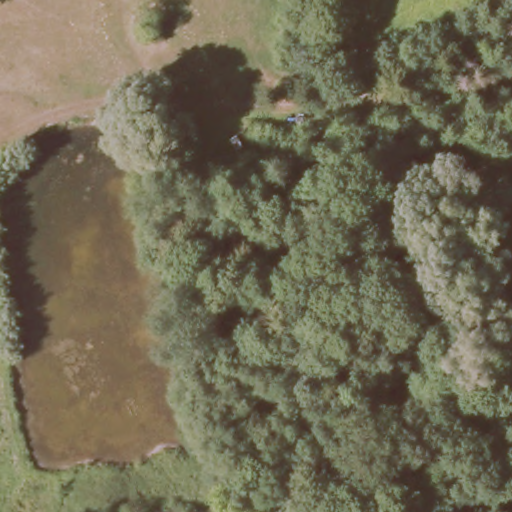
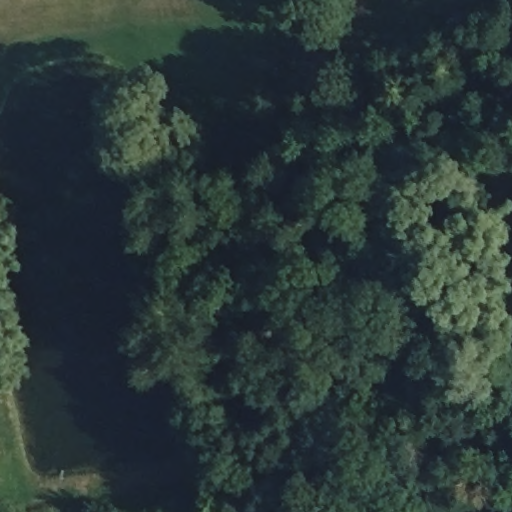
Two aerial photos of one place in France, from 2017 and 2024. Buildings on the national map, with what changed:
[]

